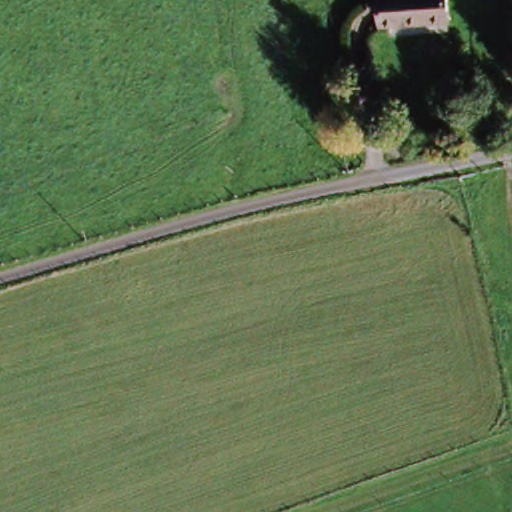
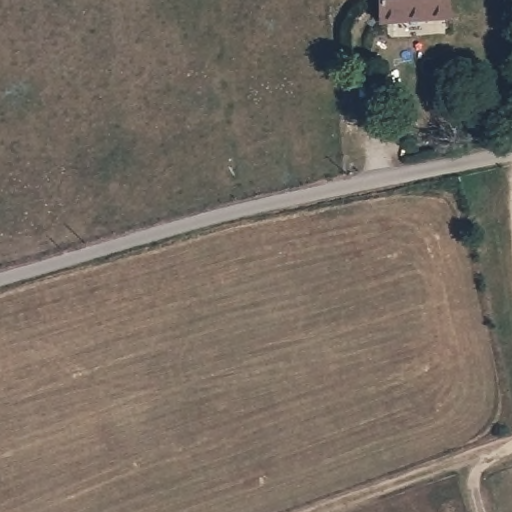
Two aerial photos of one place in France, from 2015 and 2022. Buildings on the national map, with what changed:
unchanged [(407,23),(386,25),(384,0),(448,0),(450,21),(407,23)]

